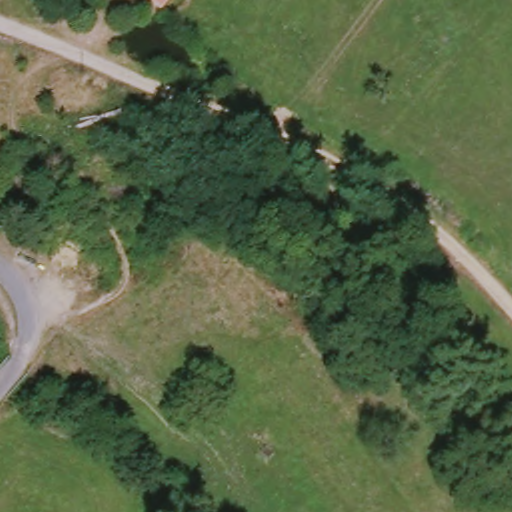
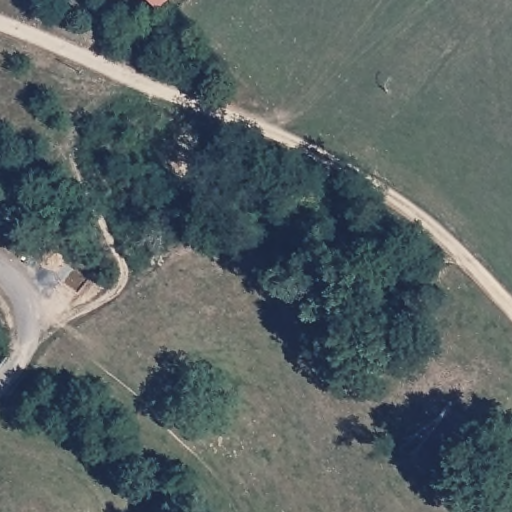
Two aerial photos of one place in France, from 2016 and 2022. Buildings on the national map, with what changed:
unchanged [(148,0),(173,0),(162,12),(148,0)]

